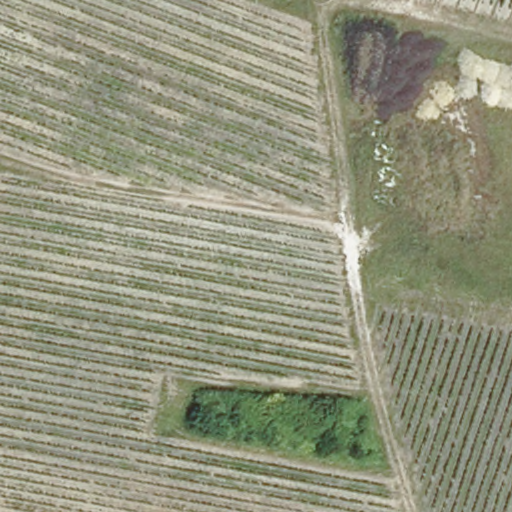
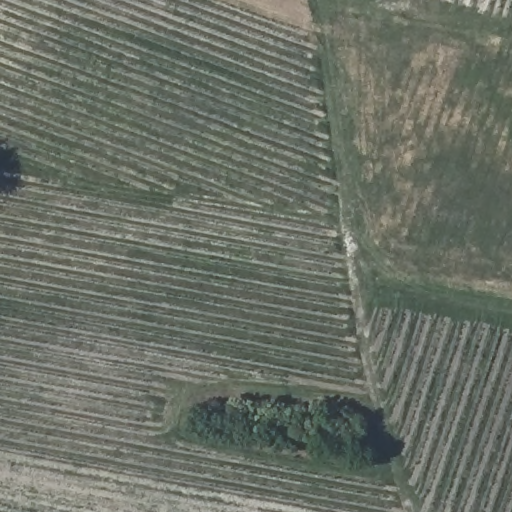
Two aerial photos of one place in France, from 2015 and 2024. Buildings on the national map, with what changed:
[]

